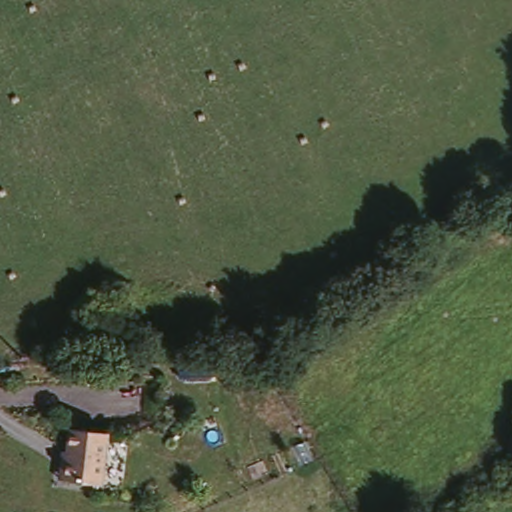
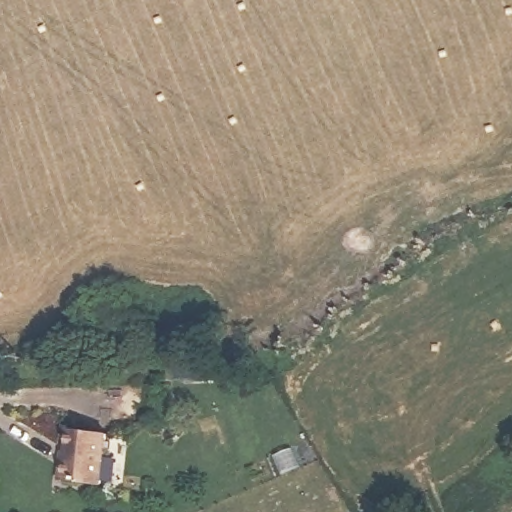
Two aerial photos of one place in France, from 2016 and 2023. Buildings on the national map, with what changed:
unchanged [(65,431),(108,435),(103,487),(59,482),(65,431)]

